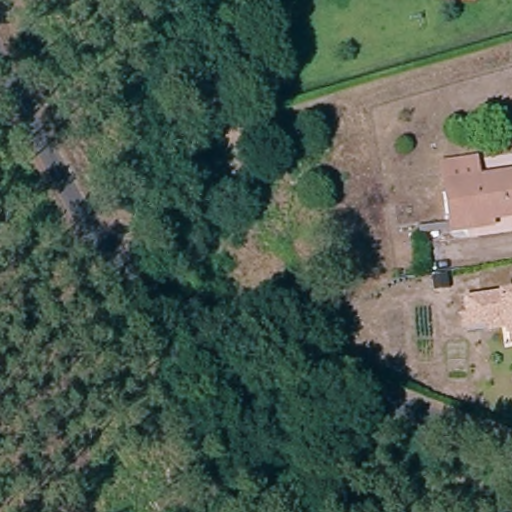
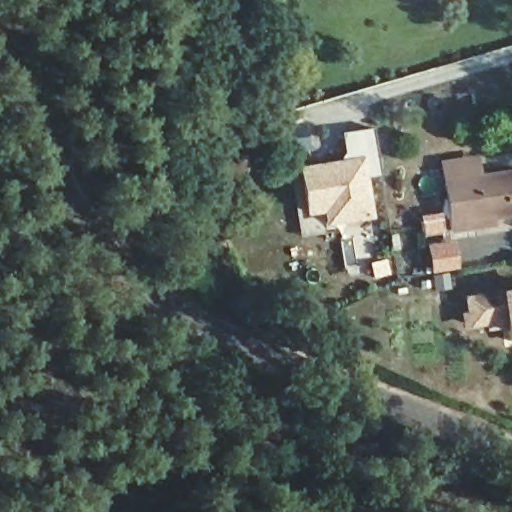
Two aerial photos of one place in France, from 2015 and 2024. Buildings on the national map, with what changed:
new [(380,176),(367,177),(373,220),(323,227),(322,215),(305,217),(298,167),(340,161),(344,152),(342,135),(373,129),(380,176)]
unchanged [(470,228),(452,231),(452,232),(443,181),(440,160),(477,152),(481,175),(512,169),(512,212),(490,216),(492,224),(470,228)]
new [(454,240),(458,266),(433,270),(429,245),(454,240)]
unchanged [(512,343),(508,326),(493,330),(492,325),(472,330),(466,303),(512,294),(512,343)]

